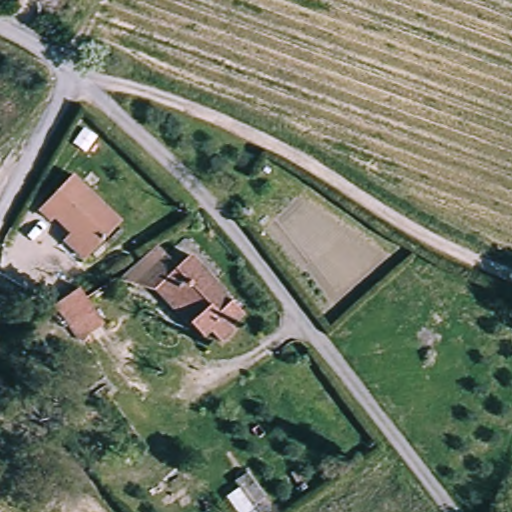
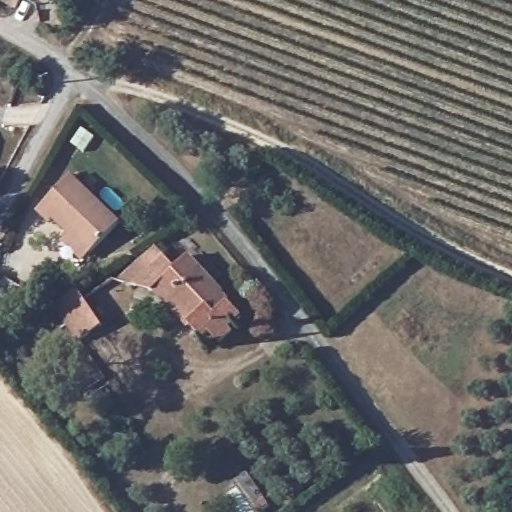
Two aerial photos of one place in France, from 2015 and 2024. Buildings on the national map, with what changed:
unchanged [(66,244),(73,237),(55,221),(50,226),(39,215),(74,179),(122,225),(94,255),(86,263),(66,244)]
unchanged [(157,245),(174,263),(147,289),(119,278),(157,245)]
unchanged [(142,294),(147,289),(174,263),(184,273),(195,262),(244,314),(232,326),(240,334),(224,347),(215,338),(209,345),(196,331),(189,334),(158,299),(142,294)]
unchanged [(83,288),(107,323),(92,333),(82,339),(58,305),(78,291),(83,288)]
unchanged [(253,504),(257,512),(238,512),(230,495),(239,489),(231,480),(246,473),(262,499),(253,504)]
unchanged [(506,512),(487,512),(489,507),(506,512)]

